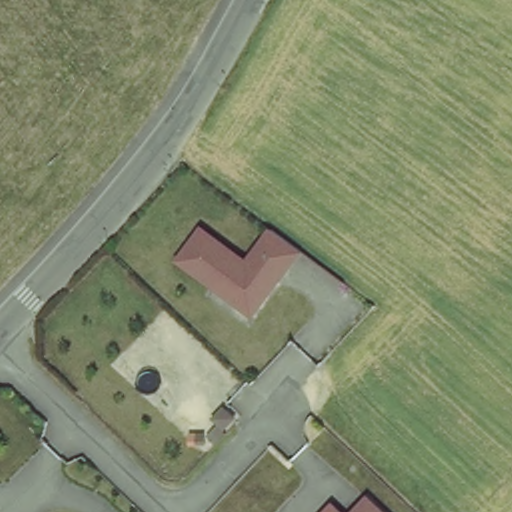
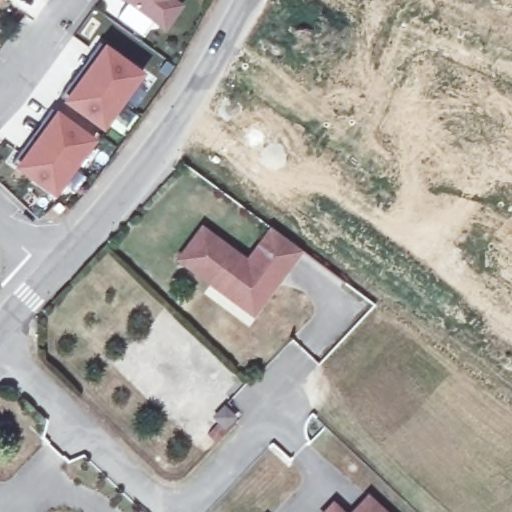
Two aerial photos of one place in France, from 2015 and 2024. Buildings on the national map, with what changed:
new [(170,23),(139,0),(186,0),(187,0),(170,23)]
new [(103,130),(63,100),(104,43),(144,73),(103,130)]
new [(14,167),(57,109),(96,139),(55,197),(14,167)]
unchanged [(235,302),(175,259),(197,228),(243,260),(267,227),(293,244),(274,272),(246,309),(235,302)]
unchanged [(385,512),(348,512),(367,494),(385,512)]
unchanged [(336,503),(345,512),(327,512),(336,503)]

